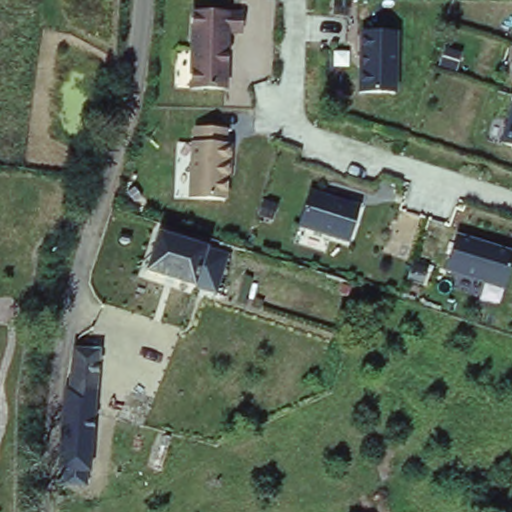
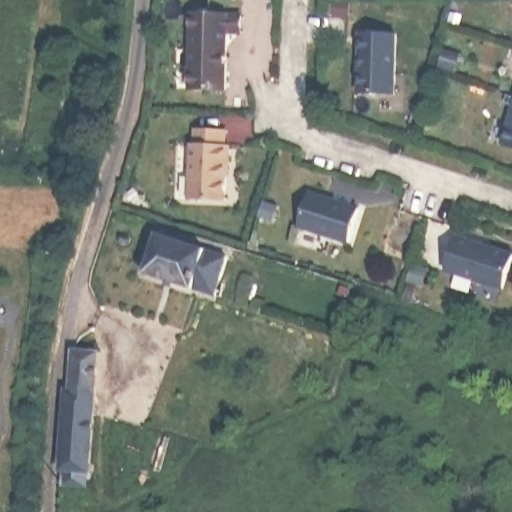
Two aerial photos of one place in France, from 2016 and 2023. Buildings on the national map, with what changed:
unchanged [(244,33),(229,33),(227,90),(190,91),(191,9),(244,13),(244,33)]
unchanged [(360,36),(395,36),(395,94),(359,95),(360,36)]
unchanged [(512,112),(512,148),(501,145),(512,112)]
unchanged [(227,142),(232,142),(228,202),(190,200),(192,145),(196,145),(197,128),(227,128),(227,142)]
unchanged [(310,193),(363,208),(352,242),(300,226),(310,193)]
unchanged [(183,282),(145,271),(155,233),(210,251),(213,242),(224,245),(221,255),(210,291),(183,282)]
unchanged [(448,271),(458,239),(512,256),(512,260),(503,287),(448,271)]
unchanged [(99,341),(102,461),(99,461),(100,475),(77,476),(77,462),(73,462),(70,381),(75,381),(74,342),(99,341)]

